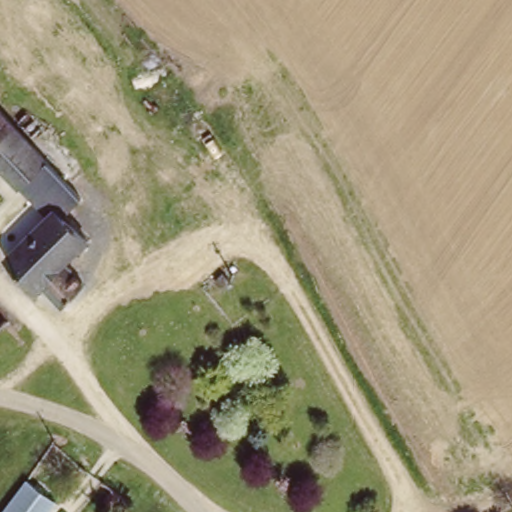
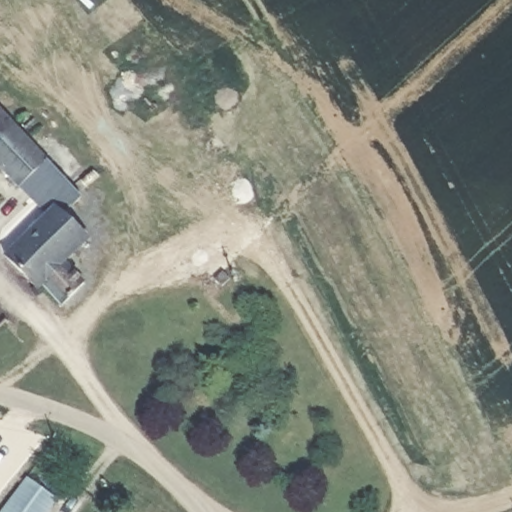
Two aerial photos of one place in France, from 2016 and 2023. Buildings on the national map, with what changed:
unchanged [(16,184),(0,167),(0,101),(48,153),(16,184)]
unchanged [(70,205),(76,210),(72,216),(65,210),(48,196),(38,208),(16,184),(48,153),(82,190),(70,205)]
unchanged [(87,228),(67,255),(87,272),(65,299),(37,276),(35,279),(2,252),(38,208),(48,196),(65,210),(72,216),(87,228)]
unchanged [(238,292),(226,281),(234,273),(245,283),(238,292)]
unchanged [(53,500),(45,512),(0,512),(0,509),(23,479),(53,500)]

